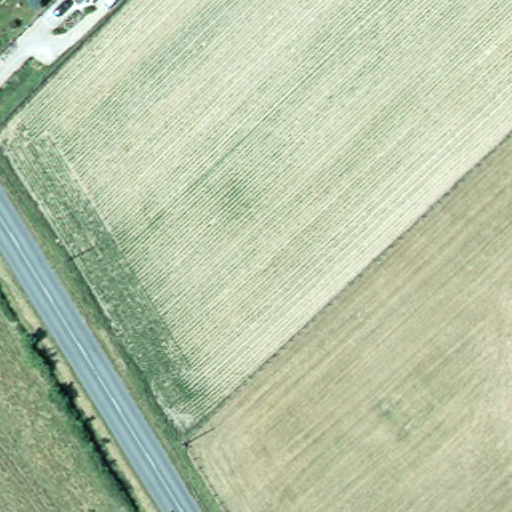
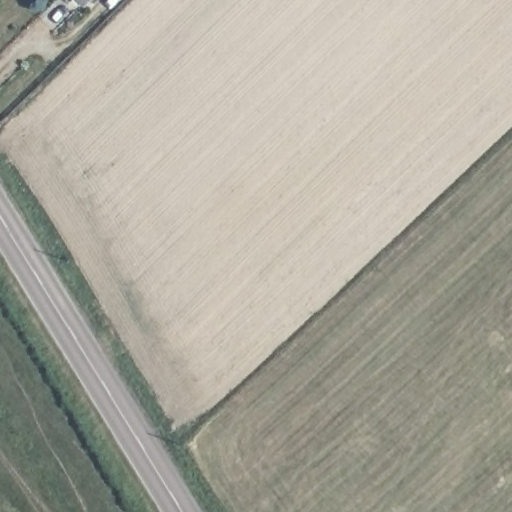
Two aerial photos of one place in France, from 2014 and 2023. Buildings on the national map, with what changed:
unchanged [(77,3),(75,0),(81,0),(77,3)]

